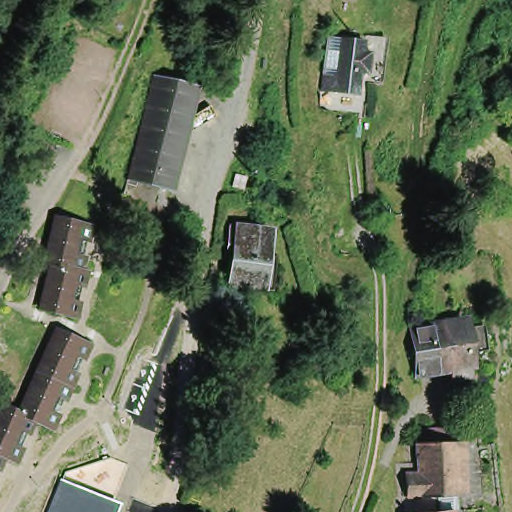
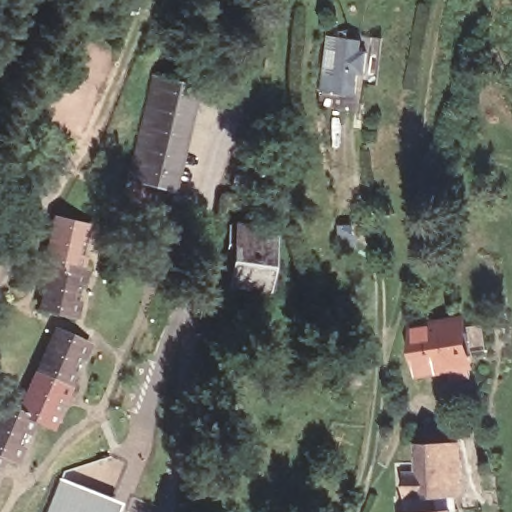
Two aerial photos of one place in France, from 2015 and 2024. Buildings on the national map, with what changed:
unchanged [(319,94),(320,67),(341,67),(342,34),(365,34),(362,85),(350,85),(350,95),(319,94)]
unchanged [(195,97),(161,198),(130,185),(160,85),(195,97)]
unchanged [(80,225),(64,316),(35,310),(52,220),(80,225)]
unchanged [(265,262),(262,290),(232,286),(236,255),(229,254),(230,250),(229,250),(227,241),(262,246),(265,262)]
unchanged [(455,378),(453,368),(452,369),(417,375),(410,328),(445,322),(465,320),(472,366),(473,375),(455,378)]
unchanged [(89,348),(85,361),(75,360),(45,435),(23,434),(5,472),(0,472),(0,406),(17,410),(53,334),(89,348)]
unchanged [(462,499),(413,500),(412,477),(423,477),(423,447),(460,446),(462,499)]
unchanged [(120,504),(117,512),(46,512),(59,479),(120,504)]

